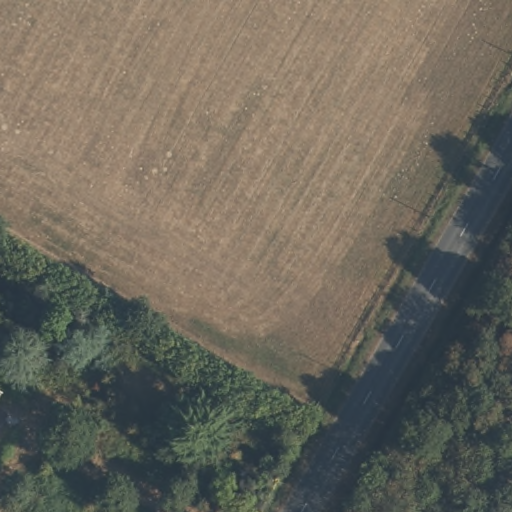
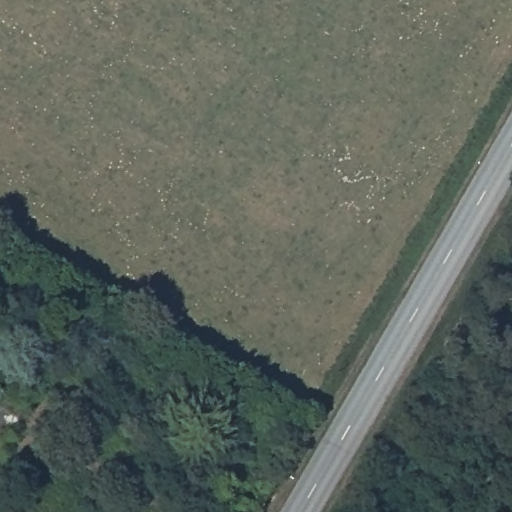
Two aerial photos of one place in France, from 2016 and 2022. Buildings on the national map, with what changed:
unchanged [(0,383),(3,385),(0,390),(0,383)]

